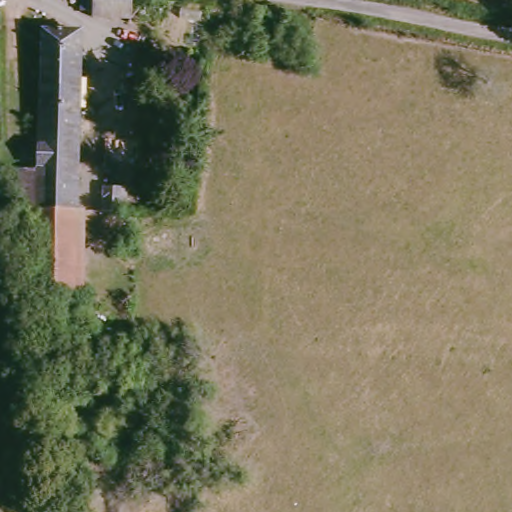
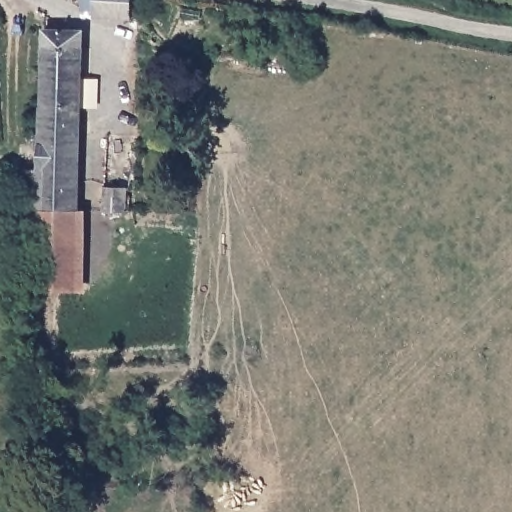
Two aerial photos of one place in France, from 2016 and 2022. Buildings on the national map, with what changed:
unchanged [(95,22),(96,15),(80,14),(80,0),(140,0),(138,25),(95,22)]
unchanged [(42,215),(25,215),(25,172),(45,171),(49,35),(83,36),(83,42),(90,42),(83,214),(83,216),(42,215)]
unchanged [(83,216),(79,292),(40,292),(42,215),(83,216)]

